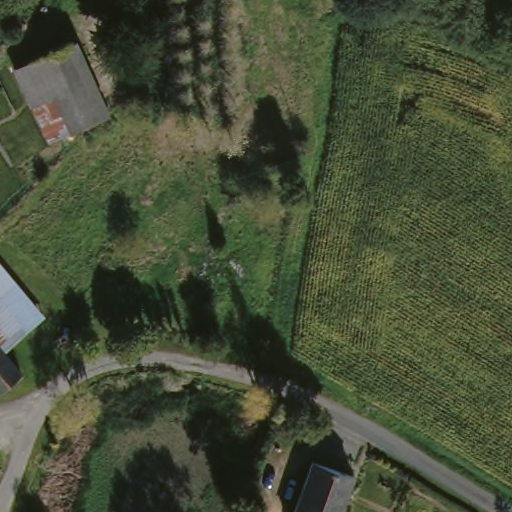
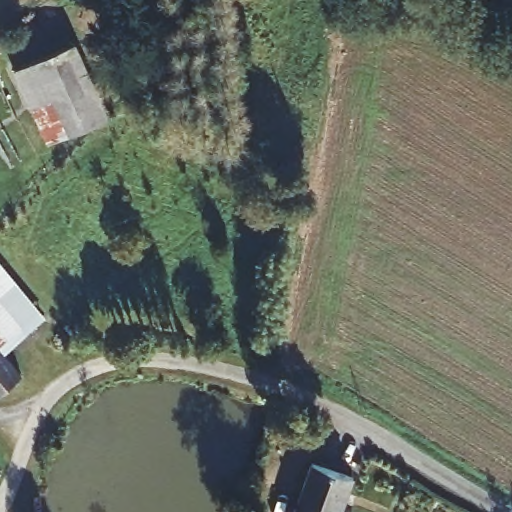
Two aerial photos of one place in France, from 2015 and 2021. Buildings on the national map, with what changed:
unchanged [(90,77),(35,102),(19,65),(73,41),(90,77)]
unchanged [(106,113),(51,138),(35,102),(90,77),(106,113)]
unchanged [(14,283),(57,314),(24,332),(3,350),(0,346),(0,266),(14,283)]
unchanged [(3,350),(23,374),(0,393),(0,346),(3,350)]
unchanged [(338,512),(295,512),(310,462),(349,477),(338,512)]
unchanged [(3,470),(0,473),(0,466),(3,470)]

